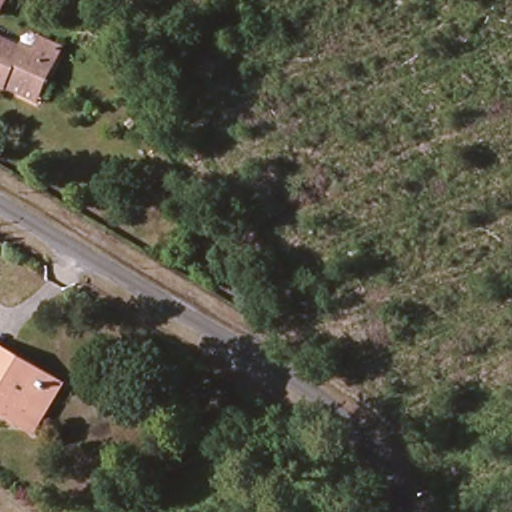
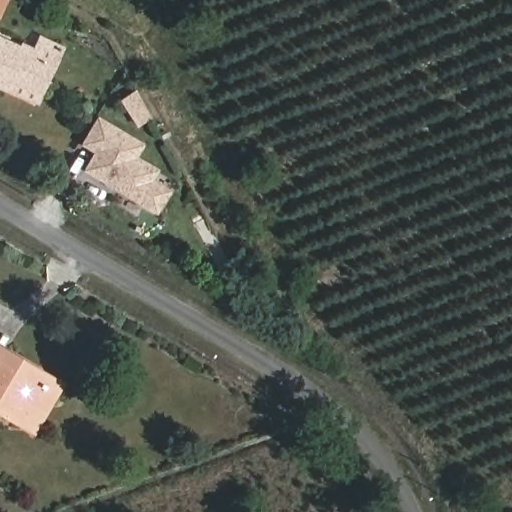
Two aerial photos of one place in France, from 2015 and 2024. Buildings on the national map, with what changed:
unchanged [(0,12),(0,0),(6,0),(0,12)]
unchanged [(7,80),(5,85),(4,87),(0,85),(0,39),(33,54),(40,39),(61,48),(53,64),(39,95),(7,80)]
new [(173,190),(160,214),(86,171),(95,153),(82,145),(98,115),(145,144),(138,156),(160,170),(154,180),(173,190)]
unchanged [(34,431),(24,425),(0,411),(0,361),(20,373),(25,365),(50,380),(61,386),(34,431)]

